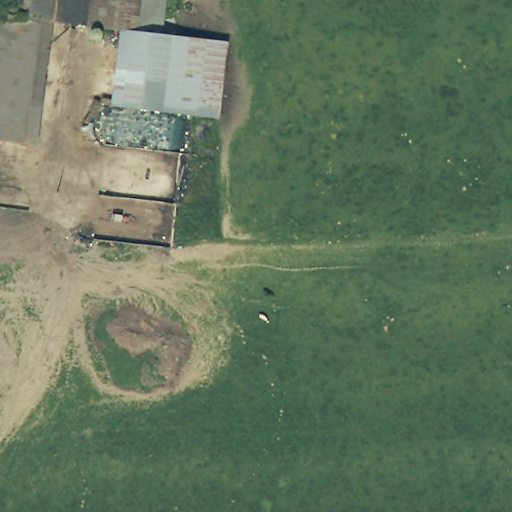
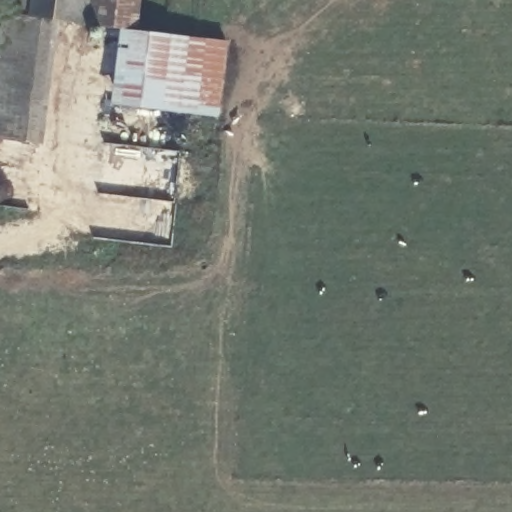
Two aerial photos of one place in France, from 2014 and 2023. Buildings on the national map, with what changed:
unchanged [(74,21),(48,18),(9,11),(11,0),(78,0),(74,21)]
unchanged [(167,36),(229,47),(216,123),(109,105),(122,29),(74,21),(78,0),(173,0),(167,36)]
unchanged [(48,18),(27,144),(0,139),(0,10),(9,11),(48,18)]

